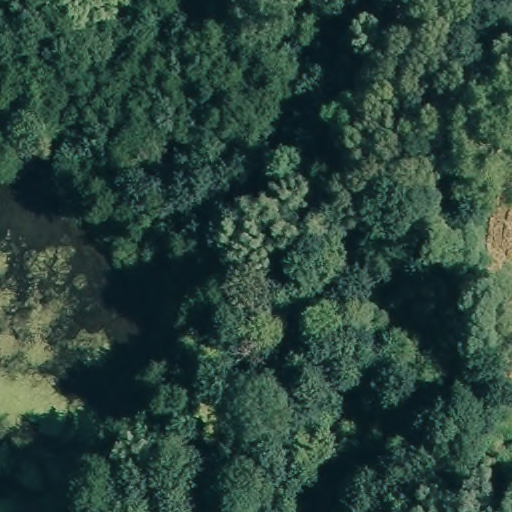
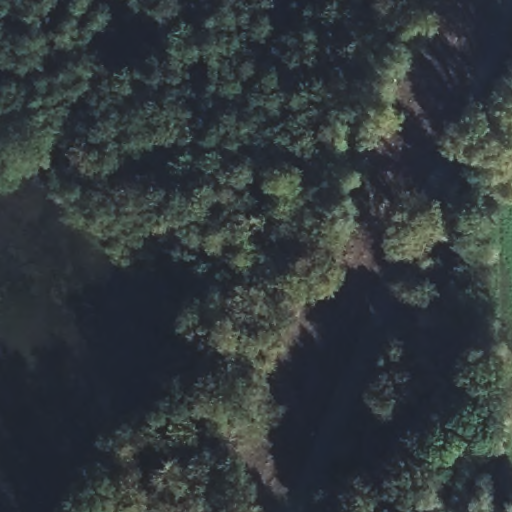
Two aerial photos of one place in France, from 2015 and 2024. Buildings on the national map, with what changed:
[]

